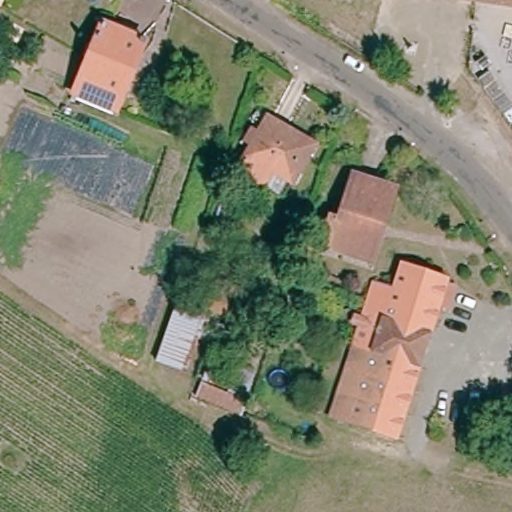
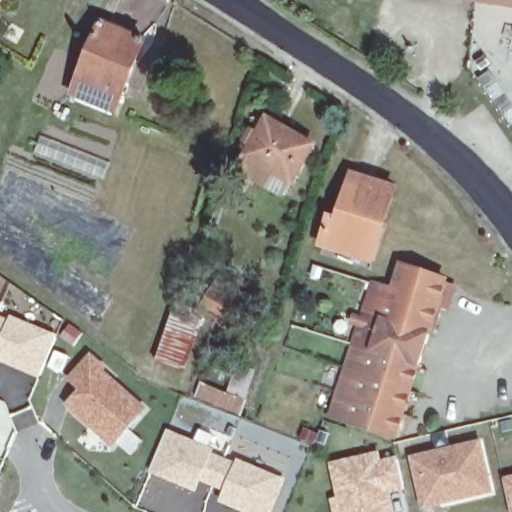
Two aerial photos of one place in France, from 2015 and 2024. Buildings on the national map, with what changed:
unchanged [(461,0),(512,0),(512,9),(478,3),(461,0)]
unchanged [(151,44),(120,115),(78,96),(110,27),(151,44)]
unchanged [(304,141),(281,180),(237,151),(262,114),(304,141)]
unchanged [(332,246),(340,221),(348,224),(362,177),(404,189),(393,225),(381,262),(370,258),(332,246)]
unchanged [(364,341),(378,293),(394,298),(404,268),(454,284),(429,363),(364,341)]
unchanged [(210,310),(222,291),(250,311),(239,330),(210,310)]
unchanged [(180,305),(205,314),(185,371),(161,363),(180,305)]
new [(11,316),(58,335),(40,378),(0,363),(0,316),(10,320),(11,316)]
unchanged [(346,402),(364,341),(429,363),(405,440),(355,423),(341,418),(346,402)]
new [(108,368),(105,371),(149,409),(115,449),(64,404),(78,389),(66,379),(91,353),(108,368)]
new [(195,398),(201,383),(226,391),(236,362),(257,370),(241,416),(195,398)]
new [(216,449),(214,453),(236,462),(238,458),(287,479),(273,512),(242,512),(220,502),(225,491),(202,482),(197,493),(150,474),(168,429),(216,449)]
new [(494,493),(423,511),(409,457),(481,440),(494,493)]
new [(380,451),(383,459),(397,456),(405,491),(389,495),(393,512),(332,512),(330,499),(337,497),(329,463),(380,451)]
demolished [(406,512),(306,512),(324,457),(414,486),(406,512)]
new [(504,478),(512,477),(512,512),(504,478)]

